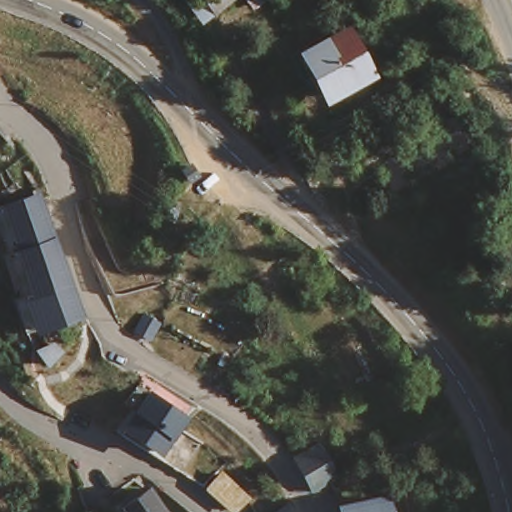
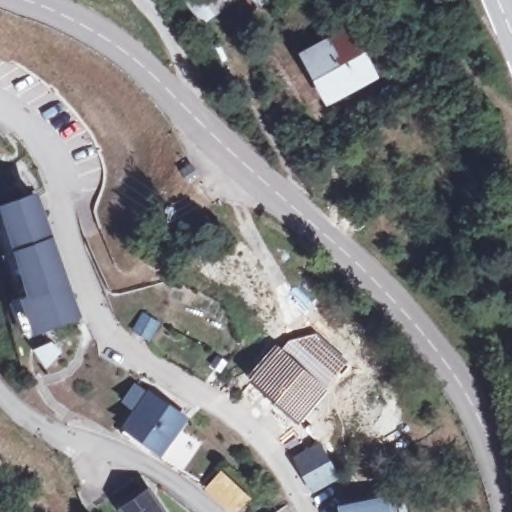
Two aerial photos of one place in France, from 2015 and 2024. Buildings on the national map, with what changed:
unchanged [(181,0),(234,0),(213,13),(201,22),(181,0)]
unchanged [(252,10),(243,0),(266,0),(252,10)]
unchanged [(343,33),(367,78),(331,99),(306,55),(343,33)]
unchanged [(25,293),(0,217),(0,205),(40,194),(80,321),(46,330),(37,332),(27,335),(17,296),(25,293)]
unchanged [(25,293),(17,296),(12,297),(0,257),(0,217),(25,293)]
new [(275,341),(280,345),(289,337),(314,330),(348,363),(297,424),(245,376),(275,341)]
unchanged [(167,472),(145,457),(113,436),(145,386),(187,415),(177,434),(195,450),(175,479),(167,472)]
unchanged [(287,454),(316,441),(336,485),(307,496),(287,454)]
unchanged [(210,485),(207,481),(220,465),(255,495),(241,508),(210,485)]
unchanged [(161,512),(122,512),(117,505),(147,485),(161,512)]
unchanged [(387,512),(342,512),(340,506),(383,495),(387,512)]
unchanged [(289,512),(285,512),(289,510),(289,512)]

